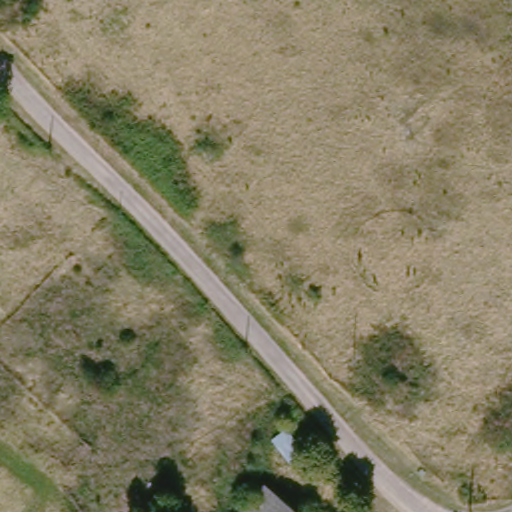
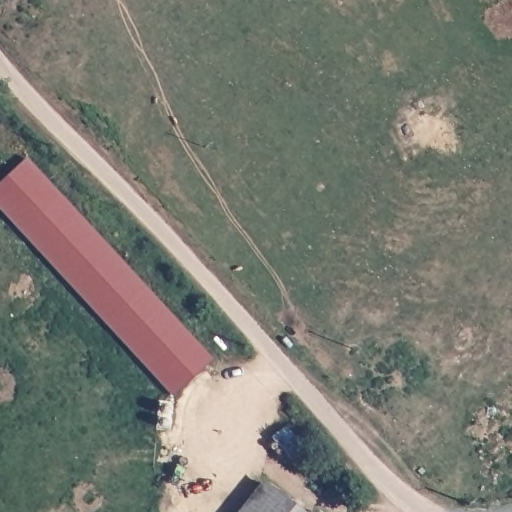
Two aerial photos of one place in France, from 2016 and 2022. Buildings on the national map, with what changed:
new [(213,359),(173,396),(0,209),(0,182),(28,159),(213,359)]
unchanged [(322,440),(308,451),(285,423),(298,412),(322,440)]
unchanged [(257,485),(295,512),(236,512),(257,485)]

